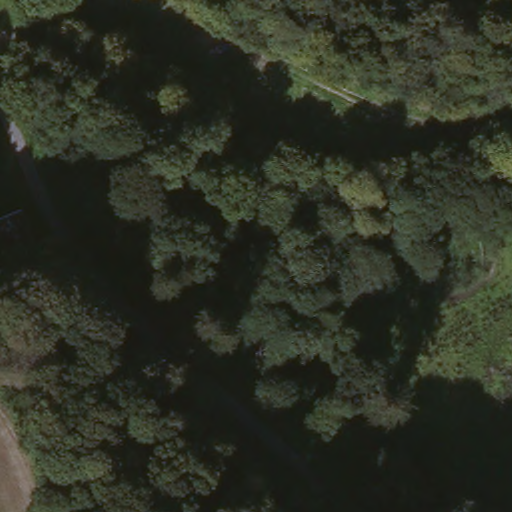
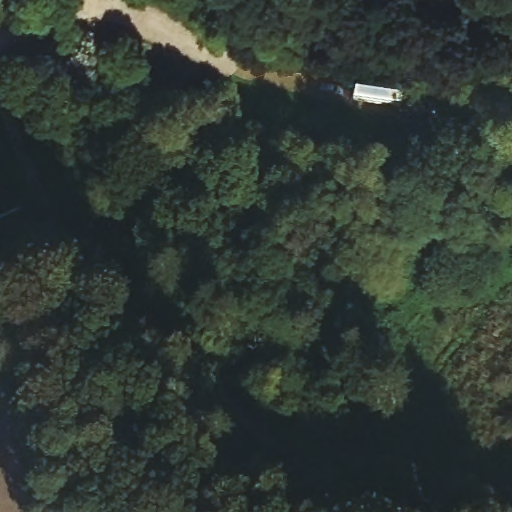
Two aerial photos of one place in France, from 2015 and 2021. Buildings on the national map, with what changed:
unchanged [(0,224),(8,217),(34,245),(18,260),(6,270),(0,264),(0,224)]

